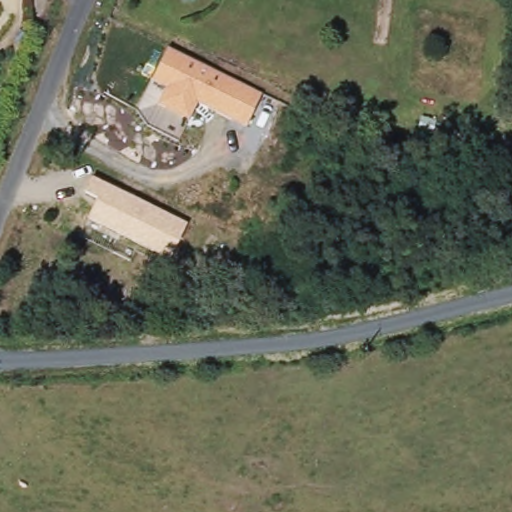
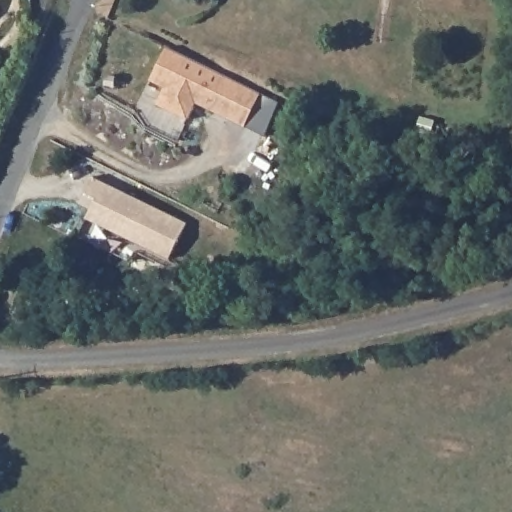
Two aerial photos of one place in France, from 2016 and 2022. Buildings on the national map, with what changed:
unchanged [(159,104),(167,87),(154,81),(170,48),(263,93),(247,125),(200,101),(191,119),(159,104)]
unchanged [(97,200),(82,193),(92,176),(188,223),(170,258),(87,218),(97,200)]

